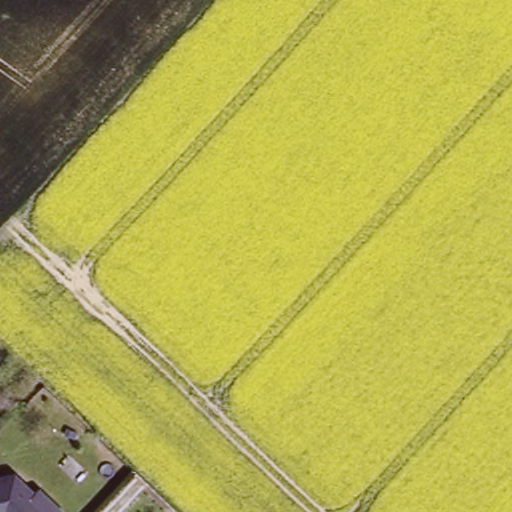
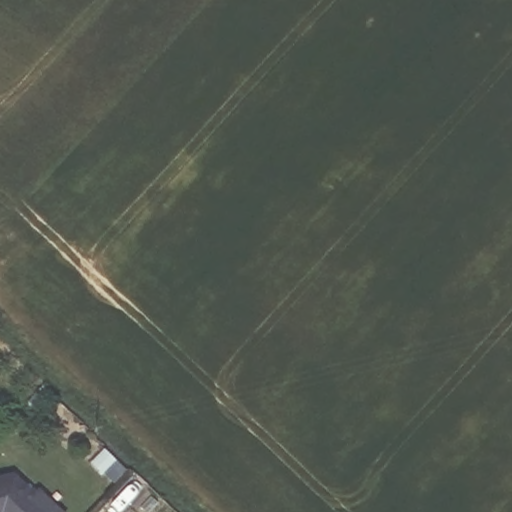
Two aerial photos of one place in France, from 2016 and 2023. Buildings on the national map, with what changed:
unchanged [(35,492),(40,490),(62,512),(0,512),(0,477),(15,475),(35,492)]

